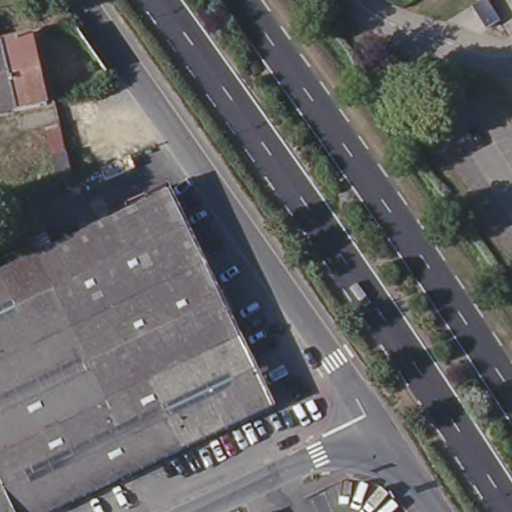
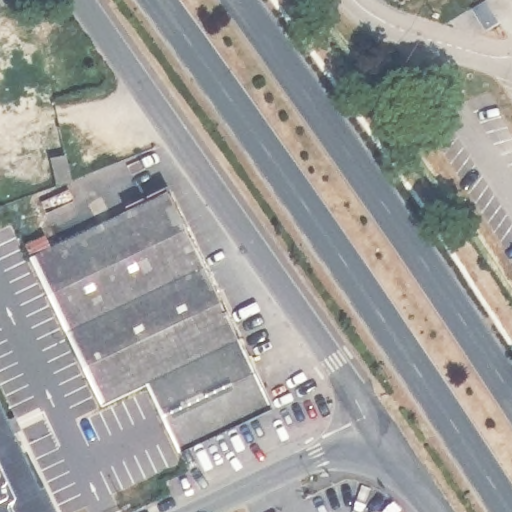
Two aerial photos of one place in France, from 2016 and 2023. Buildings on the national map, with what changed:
unchanged [(0,115),(0,49),(1,49),(0,47),(0,44),(29,37),(44,106),(0,115)]
demolished [(51,191),(51,190),(45,163),(59,161),(65,187),(51,191)]
unchanged [(164,187),(272,401),(183,445),(153,381),(108,402),(36,252),(164,187)]
unchanged [(50,228),(55,238),(34,249),(29,237),(50,228)]
demolished [(153,381),(183,445),(178,447),(49,512),(19,512),(0,475),(0,270),(36,252),(108,402),(153,381)]
new [(0,403),(51,512),(0,512),(0,403)]

